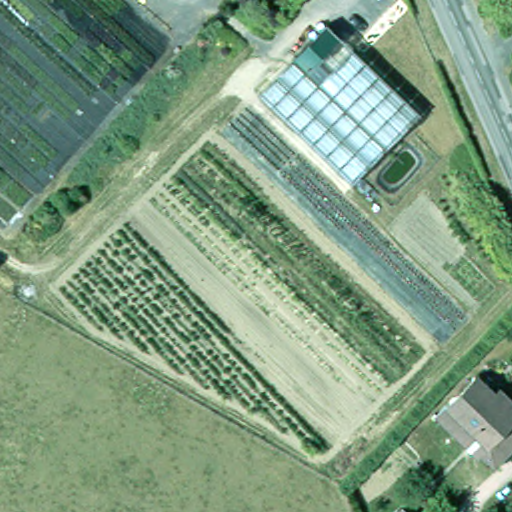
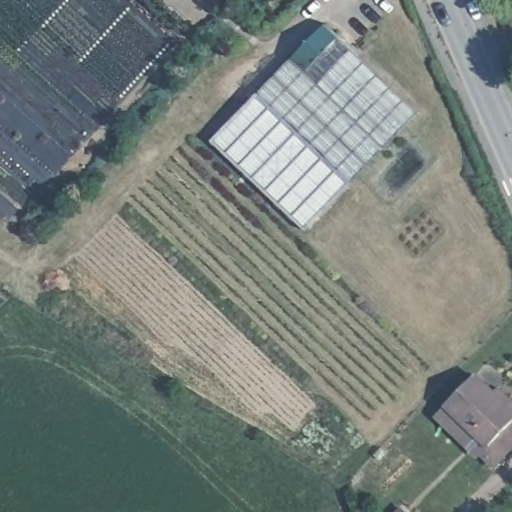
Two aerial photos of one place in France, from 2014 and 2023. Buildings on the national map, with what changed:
unchanged [(359,176),(266,90),(332,15),(425,103),(359,176)]
new [(212,141),(258,92),(353,183),(306,230),(212,141)]
unchanged [(495,392),(501,387),(512,398),(512,426),(493,446),(449,403),(477,373),(495,392)]
unchanged [(487,453),(481,459),(436,416),(449,403),(493,446),(487,453)]
unchanged [(487,453),(493,446),(512,426),(512,450),(499,464),(496,462),(487,453)]
unchanged [(395,512),(394,512),(394,511),(395,512)]

